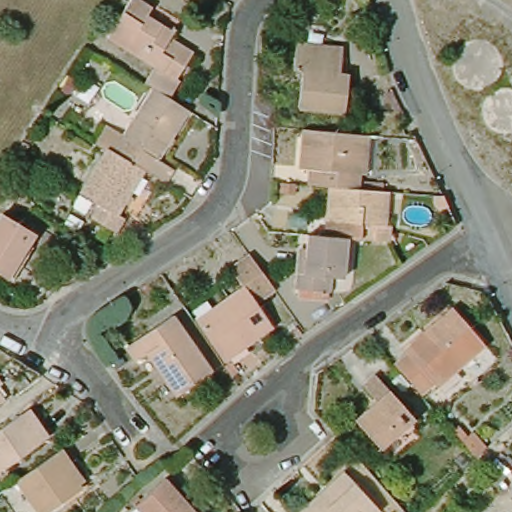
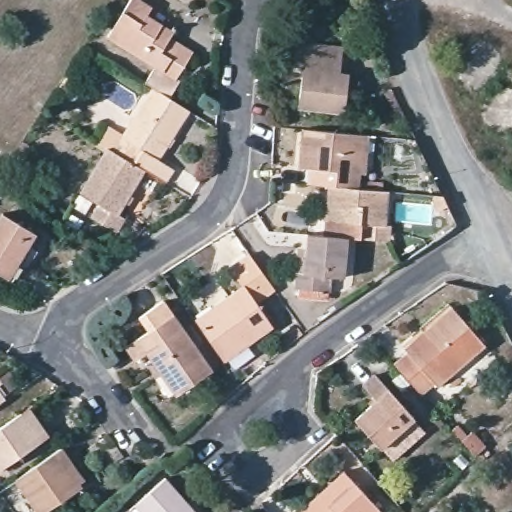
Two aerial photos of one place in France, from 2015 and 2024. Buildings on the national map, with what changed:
unchanged [(162,180),(140,167),(101,143),(110,129),(120,135),(150,85),(143,80),(154,63),(105,33),(126,0),(144,0),(150,3),(145,10),(172,29),(168,35),(175,40),(190,49),(173,76),(179,80),(169,97),(186,108),(172,130),(155,156),(166,162),(171,165),(162,180)]
unchanged [(304,88),(305,74),(311,75),(312,68),(295,67),(298,40),(345,43),(344,53),(344,57),(344,61),(343,66),(350,66),(354,67),(352,90),(351,106),(303,101),(304,88)]
unchanged [(330,186),(314,184),(315,169),(305,169),(307,130),(367,134),(374,134),(370,173),(364,173),(362,188),(330,186)]
unchanged [(117,216),(109,230),(80,213),(90,200),(72,189),(98,149),(101,143),(140,167),(112,213),(117,216)]
unchanged [(329,204),(330,186),(362,188),(391,190),(388,224),(395,225),(394,242),(360,240),(362,227),(335,225),(327,224),(329,204)]
unchanged [(0,268),(0,220),(6,210),(43,232),(16,278),(0,268)]
unchanged [(350,281),(338,280),(337,293),(302,291),(305,254),(313,255),(315,236),(353,239),(350,281)]
unchanged [(279,317),(228,351),(200,309),(250,275),(279,317)]
unchanged [(473,368),(465,358),(442,378),(440,375),(427,386),(402,357),(414,347),(409,342),(429,324),(457,300),(489,336),(497,345),(473,368)]
unchanged [(215,369),(179,394),(150,351),(139,358),(129,343),(177,312),(215,369)]
unchanged [(17,359),(40,376),(15,395),(4,385),(0,388),(0,369),(17,359)]
unchanged [(419,421),(387,449),(362,422),(380,407),(367,393),(382,379),(419,421)]
unchanged [(5,401),(0,405),(0,392),(5,401)]
unchanged [(19,409),(41,440),(0,469),(0,423),(19,409)]
unchanged [(15,477),(60,445),(71,460),(86,482),(82,486),(45,512),(39,512),(15,477)]
unchanged [(470,462),(460,472),(445,456),(455,447),(470,462)]
unchanged [(370,512),(290,512),(317,487),(340,467),(352,480),(374,507),(370,512)]
unchanged [(135,503),(170,475),(199,512),(143,512),(135,503)]

